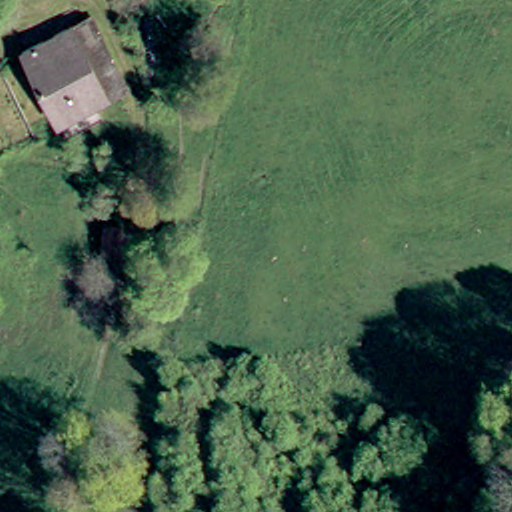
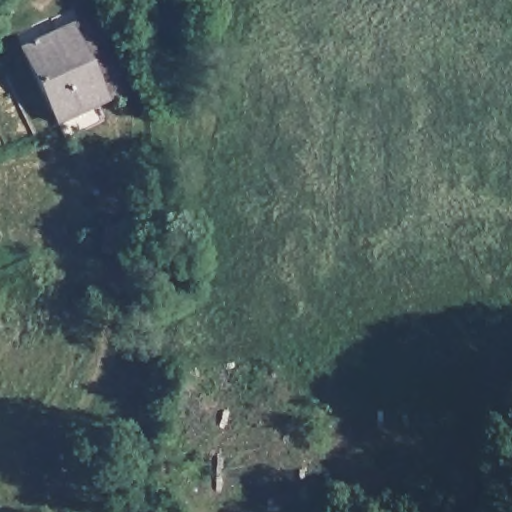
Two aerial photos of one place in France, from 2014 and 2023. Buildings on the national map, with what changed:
unchanged [(55,121),(20,46),(82,13),(120,89),(55,121)]

